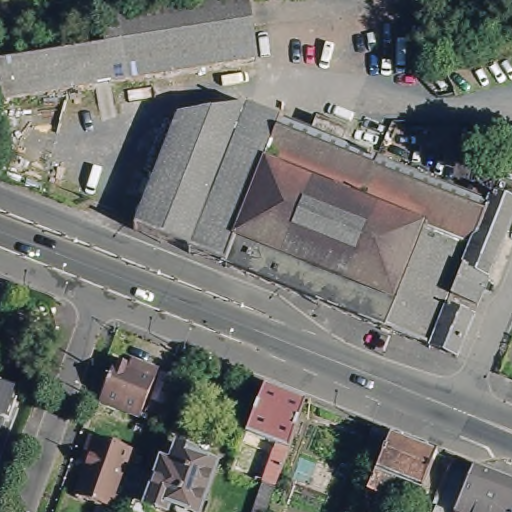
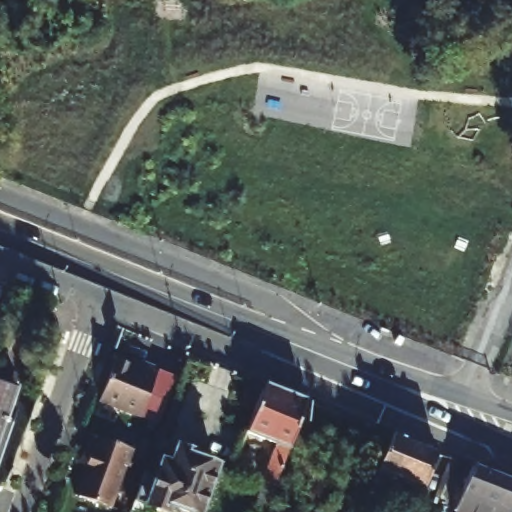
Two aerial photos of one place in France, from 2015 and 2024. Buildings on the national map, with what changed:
demolished [(5,100),(0,57),(0,53),(107,35),(103,6),(108,5),(149,0),(251,0),(260,62),(5,100)]
demolished [(383,330),(223,263),(133,227),(177,116),(244,105),(280,120),(486,201),(489,192),(512,202),(512,224),(477,311),(456,360),(383,330)]
unchanged [(139,418),(99,402),(114,361),(128,366),(130,360),(143,366),(158,372),(139,418)]
unchanged [(244,405),(254,378),(269,384),(311,400),(308,408),(271,512),(255,512),(264,488),(256,485),(268,451),(246,443),(259,410),(244,405)]
unchanged [(7,425),(3,423),(0,433),(0,383),(19,390),(7,425)]
unchanged [(386,439),(431,457),(416,495),(394,485),(384,505),(378,503),(374,512),(356,512),(386,439)]
unchanged [(107,512),(99,512),(71,502),(84,460),(80,458),(85,441),(126,455),(107,512)]
unchanged [(166,473),(171,458),(169,455),(183,447),(186,442),(205,450),(204,452),(226,460),(208,510),(204,508),(201,512),(189,512),(186,511),(186,502),(179,500),(175,506),(158,501),(154,511),(140,506),(153,468),(166,473)]
unchanged [(512,489),(512,512),(451,512),(466,471),(512,489)]

